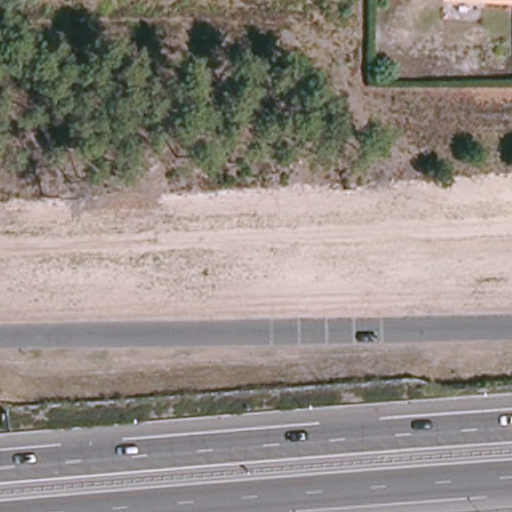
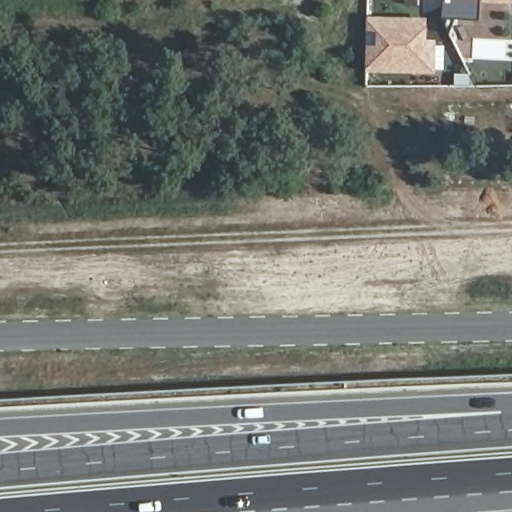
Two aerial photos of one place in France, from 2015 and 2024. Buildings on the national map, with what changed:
unchanged [(512,3),(445,1),(445,0),(512,0),(512,3)]
new [(372,17),(429,21),(428,43),(437,44),(436,70),(369,66),(372,17)]

